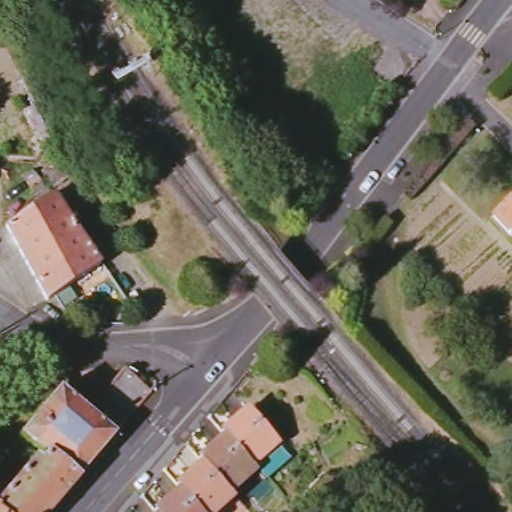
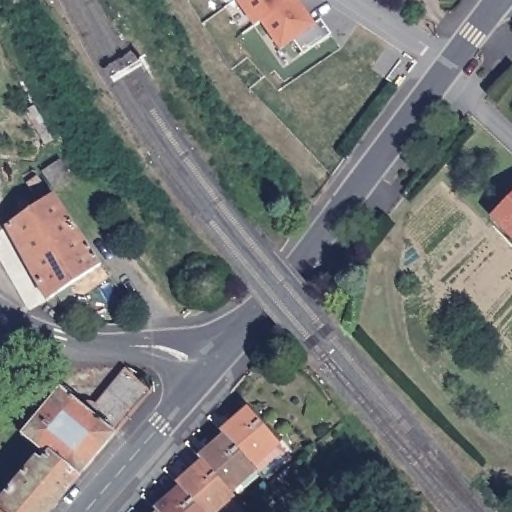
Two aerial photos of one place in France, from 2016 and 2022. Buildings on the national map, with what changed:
new [(303,54),(294,42),(281,51),(260,22),(254,26),(236,0),(290,0),(299,0),(314,22),(320,18),(331,34),(303,54)]
unchanged [(44,170),(61,158),(73,175),(55,186),(44,170)]
unchanged [(42,179),(45,184),(35,191),(26,180),(38,172),(42,179)]
unchanged [(6,227),(53,195),(100,264),(47,299),(6,227)]
unchanged [(512,198),(512,234),(495,215),(512,198)]
unchanged [(44,449),(24,431),(63,387),(81,400),(83,399),(85,398),(87,397),(89,397),(91,398),(94,399),(96,399),(126,365),(153,389),(133,412),(108,441),(86,467),(48,511),(47,512),(0,512),(0,499),(44,449)]
unchanged [(226,431),(223,427),(249,405),(279,440),(279,441),(291,455),(276,470),(262,455),(254,462),(226,431)]
unchanged [(204,458),(200,453),(226,431),(254,462),(258,466),(231,488),(204,458)]
unchanged [(178,480),(204,458),(231,488),(234,492),(211,512),(207,512),(181,483),(178,480)]
unchanged [(156,505),(181,483),(207,512),(162,512),(160,510),(156,505)]
unchanged [(162,512),(157,512),(160,510),(162,512)]

